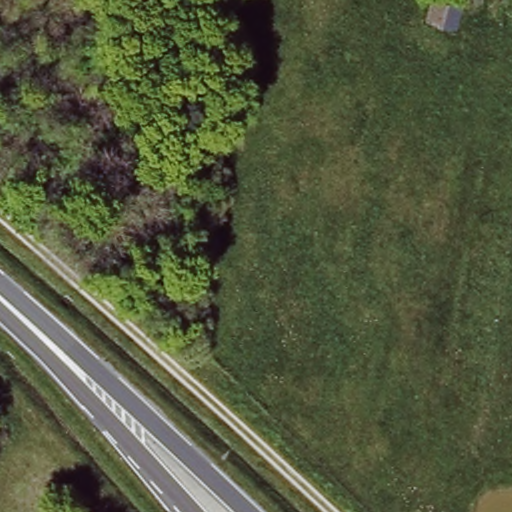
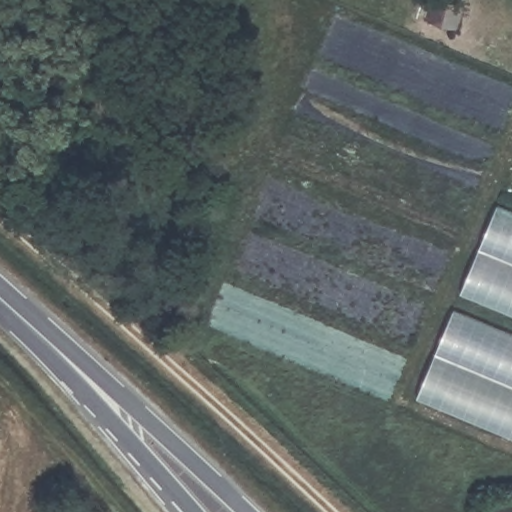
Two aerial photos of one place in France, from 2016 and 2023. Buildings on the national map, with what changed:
unchanged [(425,22),(430,0),(449,0),(460,3),(455,29),(425,22)]
new [(460,295),(497,206),(512,212),(512,317),(460,295)]
new [(417,399),(452,311),(512,335),(512,439),(417,399)]

